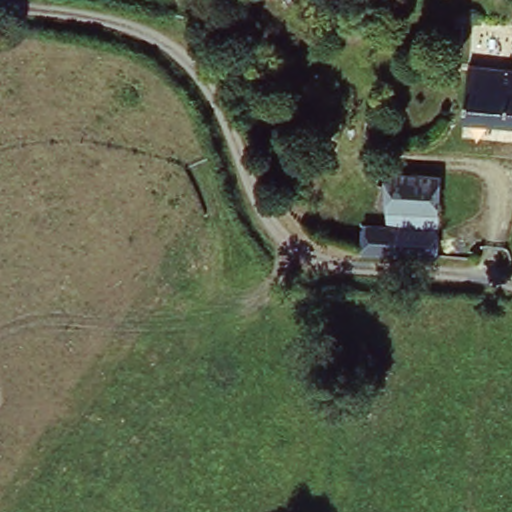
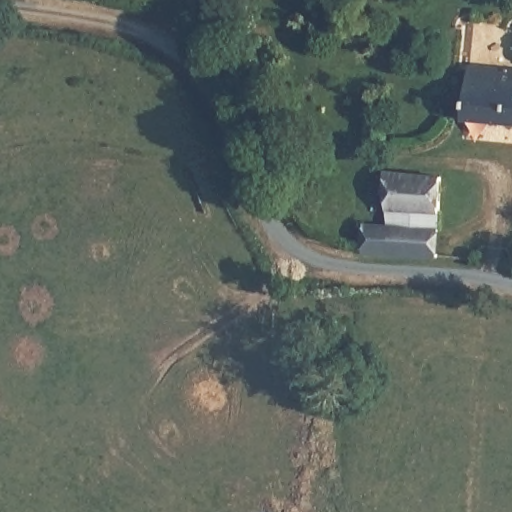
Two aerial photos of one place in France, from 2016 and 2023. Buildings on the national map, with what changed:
unchanged [(461,67),(512,75),(512,127),(453,118),(461,67)]
unchanged [(380,171),(363,170),(364,151),(381,152),(380,171)]
unchanged [(383,254),(365,250),(359,241),(365,219),(380,220),(384,201),(372,197),(372,181),(385,182),(387,172),(439,179),(435,232),(434,261),(407,257),(383,254)]

